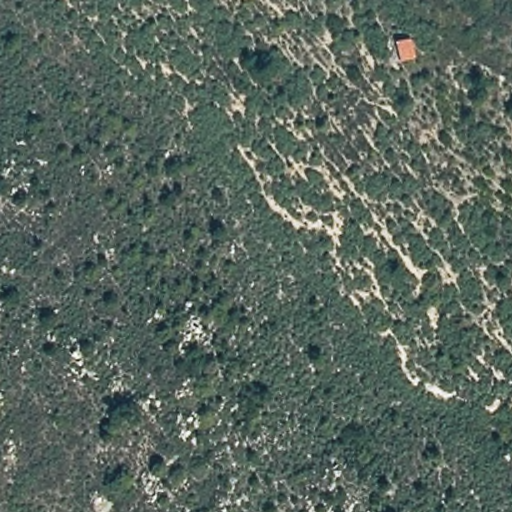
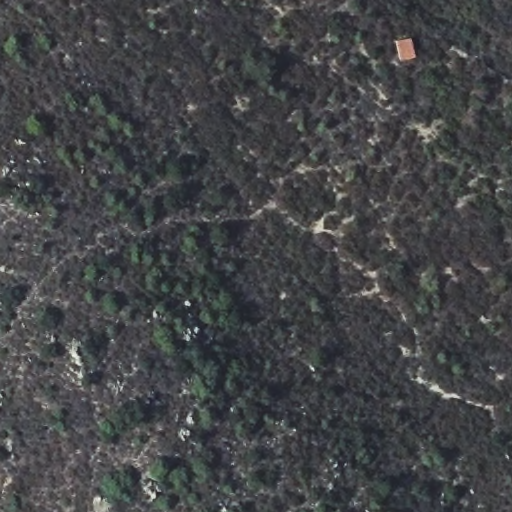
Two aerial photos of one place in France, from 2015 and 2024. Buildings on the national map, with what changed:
unchanged [(411,38),(419,60),(402,64),(395,43),(411,38)]

